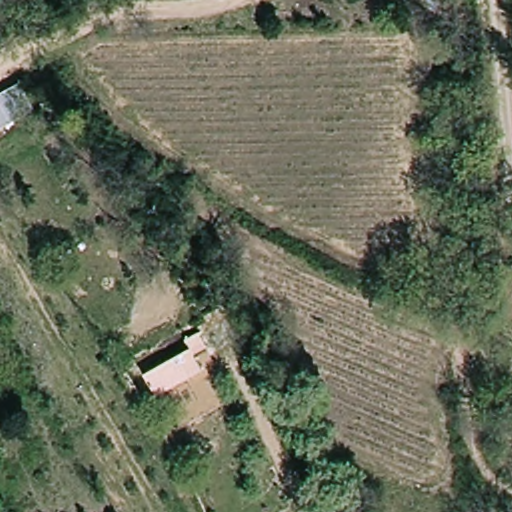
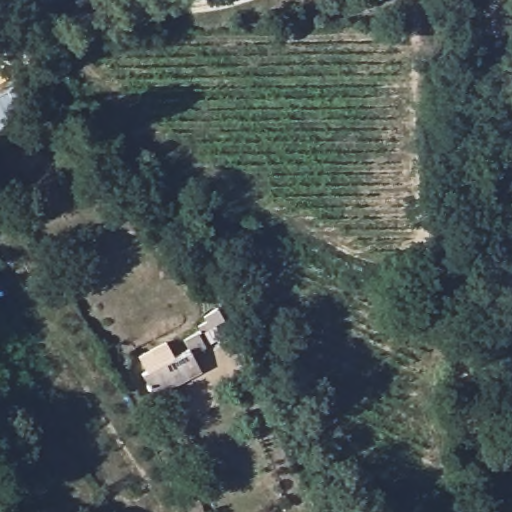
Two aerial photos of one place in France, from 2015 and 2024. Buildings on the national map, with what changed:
unchanged [(34,107),(0,128),(0,94),(21,82),(34,107)]
unchanged [(186,349),(181,340),(195,332),(203,346),(189,354),(198,371),(151,397),(140,375),(186,349)]

